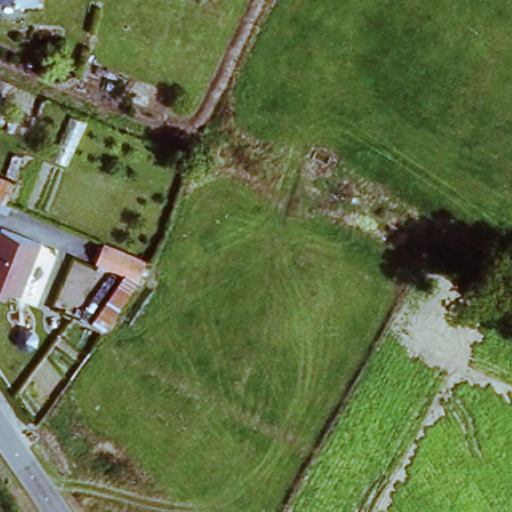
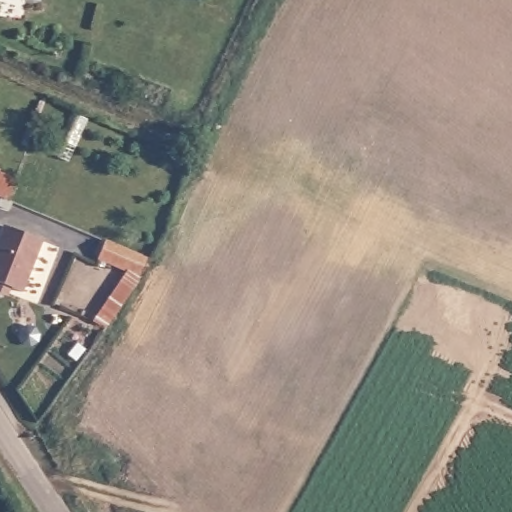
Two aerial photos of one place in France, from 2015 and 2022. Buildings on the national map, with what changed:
unchanged [(0,166),(16,173),(9,197),(0,195),(0,166)]
unchanged [(40,240),(20,284),(0,276),(0,242),(7,225),(40,240)]
unchanged [(137,271),(100,256),(107,240),(144,255),(137,271)]

